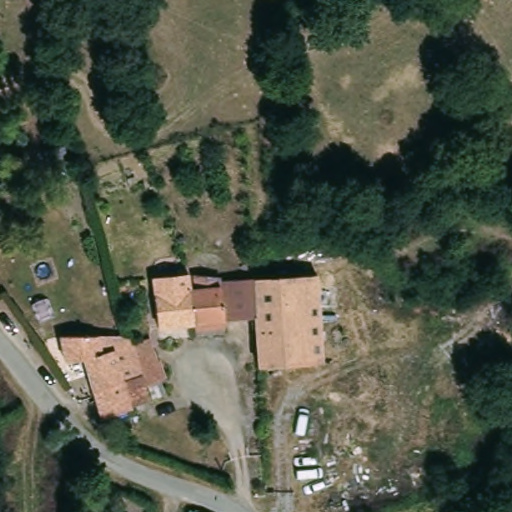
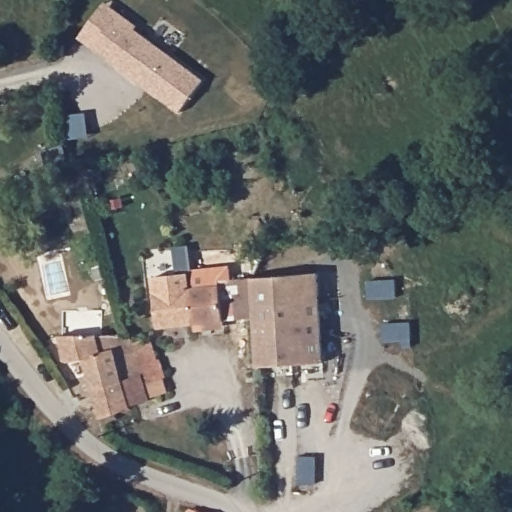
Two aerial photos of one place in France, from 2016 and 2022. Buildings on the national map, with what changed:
new [(112,67),(78,41),(104,6),(118,16),(137,30),(134,34),(202,86),(178,117),(144,91),(136,85),(112,67)]
unchanged [(198,326),(196,327),(163,330),(156,280),(191,275),(193,289),(197,290),(196,276),(193,275),(224,274),(225,290),(224,290),(228,323),(198,326)]
unchanged [(320,275),(328,366),(279,369),(274,278),(320,275)]
unchanged [(279,369),(263,370),(235,371),(229,289),(229,281),(257,280),(274,278),(279,369)]
unchanged [(130,343),(139,375),(122,382),(126,394),(130,408),(116,414),(99,421),(82,360),(69,363),(64,361),(59,340),(128,337),(130,343)]
unchanged [(134,341),(140,340),(145,340),(148,341),(151,345),(151,352),(155,351),(167,393),(151,400),(146,387),(126,394),(122,382),(139,375),(130,343),(134,341)]
unchanged [(19,398),(26,407),(0,419),(0,371),(19,398)]

